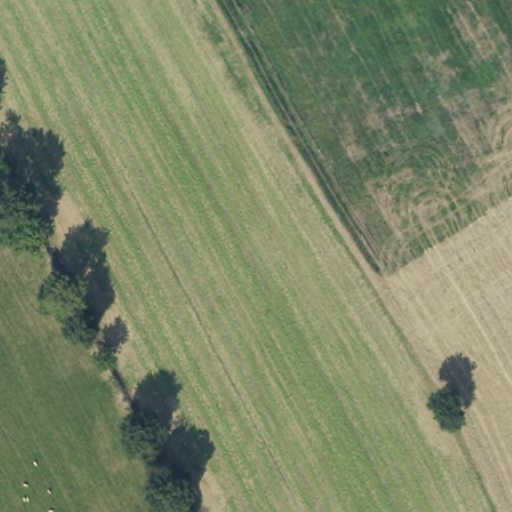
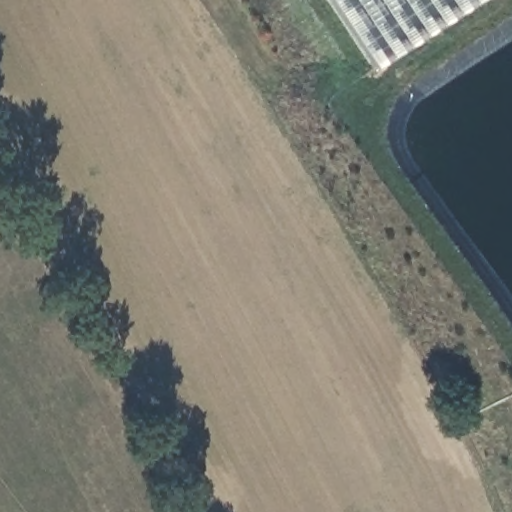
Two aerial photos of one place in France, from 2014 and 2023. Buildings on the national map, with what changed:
new [(323,0),(476,0),(369,69),(323,0)]

